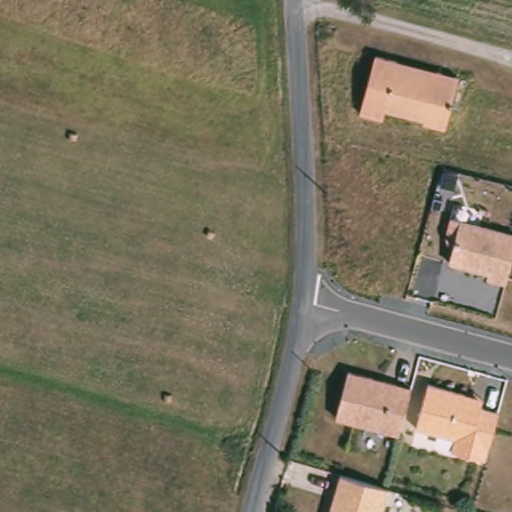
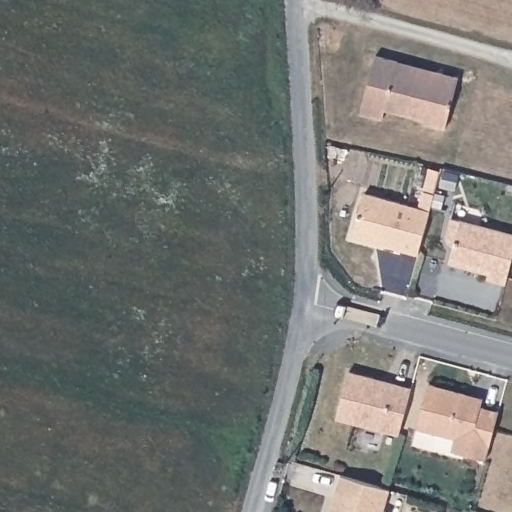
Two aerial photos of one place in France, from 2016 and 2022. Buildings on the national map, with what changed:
unchanged [(446,122),(424,118),(425,114),(385,106),(383,115),(361,111),(373,52),(395,57),(394,65),(403,67),(403,63),(434,70),(435,66),(457,70),(446,122)]
new [(418,209),(419,204),(422,193),(428,170),(438,172),(432,195),(429,207),(428,212),(418,209)]
new [(416,256),(350,238),(363,194),(428,212),(416,256)]
unchanged [(450,218),(460,221),(512,232),(512,256),(506,285),(488,282),(489,274),(451,265),(455,244),(445,242),(450,218)]
unchanged [(411,386),(400,434),(337,419),(348,371),(411,386)]
unchanged [(483,397),(481,408),(497,412),(487,458),(452,450),(455,437),(418,428),(427,384),(483,397)]
unchanged [(382,512),(330,512),(334,498),(339,480),(388,494),(382,512)]

